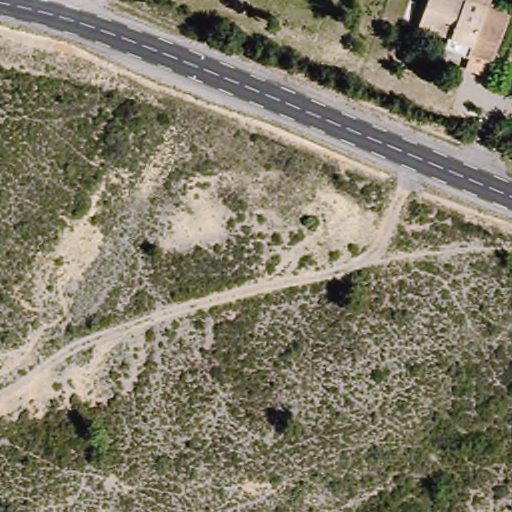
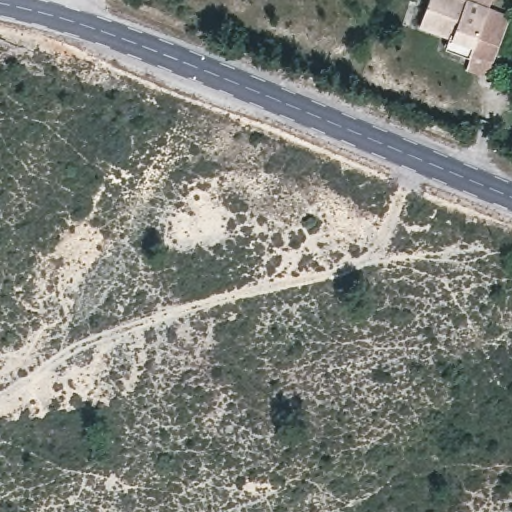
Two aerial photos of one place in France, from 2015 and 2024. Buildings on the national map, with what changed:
unchanged [(489,7),(509,15),(499,48),(480,44),(475,53),(442,38),(451,20),(419,9),(423,0),(494,0),(489,7)]

